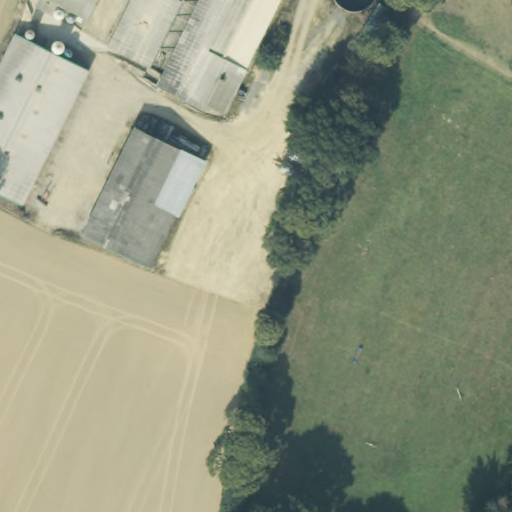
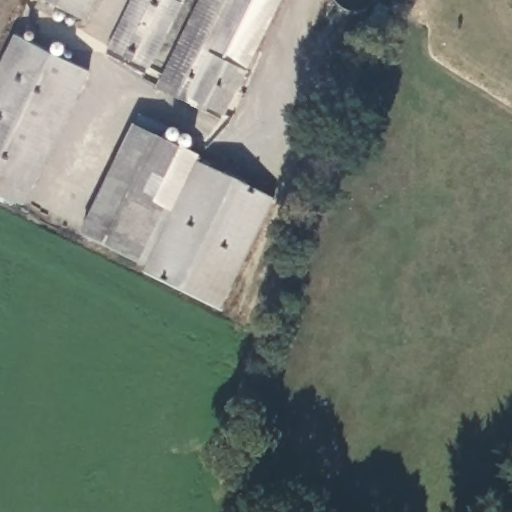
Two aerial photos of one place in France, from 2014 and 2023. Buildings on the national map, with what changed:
unchanged [(63,0),(97,0),(90,14),(63,0)]
unchanged [(107,51),(132,0),(182,0),(145,70),(107,51)]
unchanged [(160,82),(200,0),(279,0),(224,115),(207,106),(204,114),(156,89),(160,82)]
unchanged [(85,72),(26,192),(19,206),(0,196),(0,64),(14,37),(85,72)]
unchanged [(134,127),(199,161),(167,228),(146,271),(80,236),(94,209),(134,127)]
new [(220,310),(145,272),(145,270),(146,271),(167,228),(199,161),(273,201),(220,310)]

